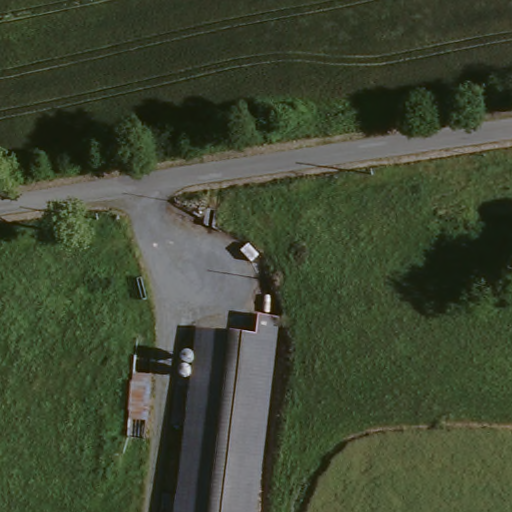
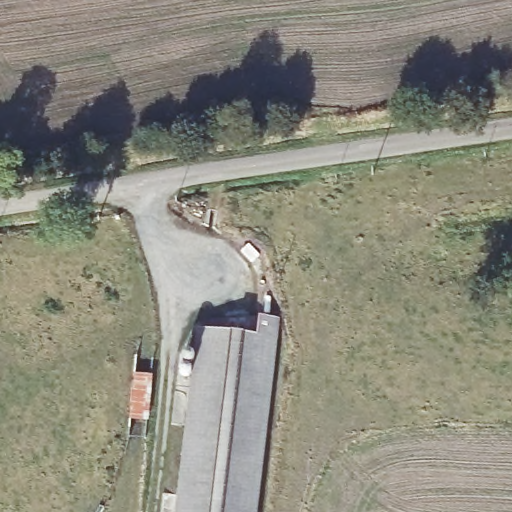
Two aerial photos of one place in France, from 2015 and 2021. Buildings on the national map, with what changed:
unchanged [(269,341),(248,512),(170,512),(193,331),(269,341)]

